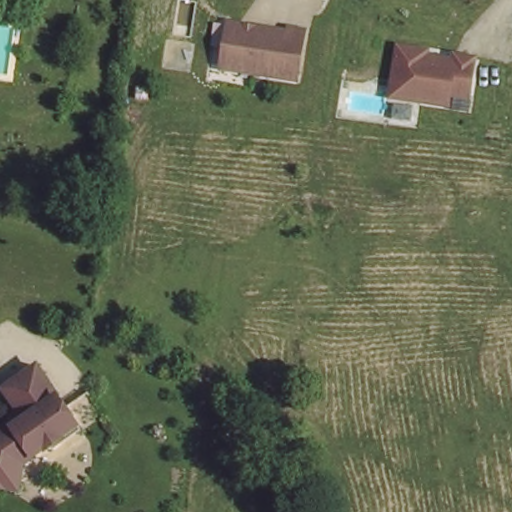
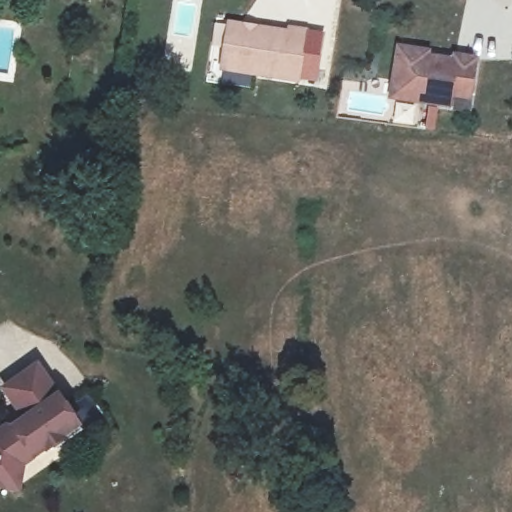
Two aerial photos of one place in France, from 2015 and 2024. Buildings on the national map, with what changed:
unchanged [(232,18),(291,25),(292,21),(308,23),(302,72),(259,67),(226,63),(227,58),(232,18)]
unchanged [(467,83),(448,81),(447,92),(389,84),(396,34),(416,37),(416,42),(452,47),(453,42),(472,45),(467,83)]
unchanged [(2,417),(8,419),(21,410),(0,379),(34,357),(68,410),(78,427),(56,441),(49,446),(39,445),(3,468),(0,482),(0,418),(2,417)]

